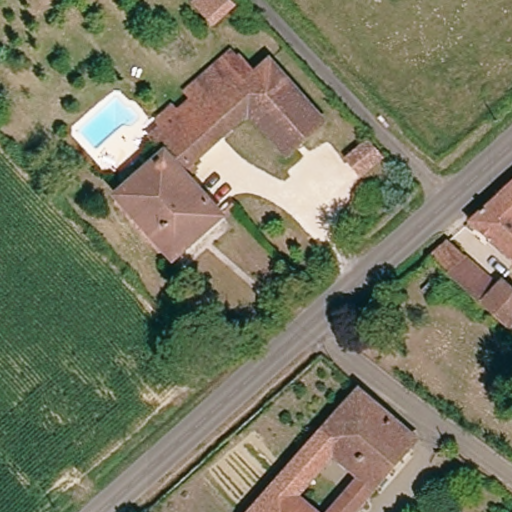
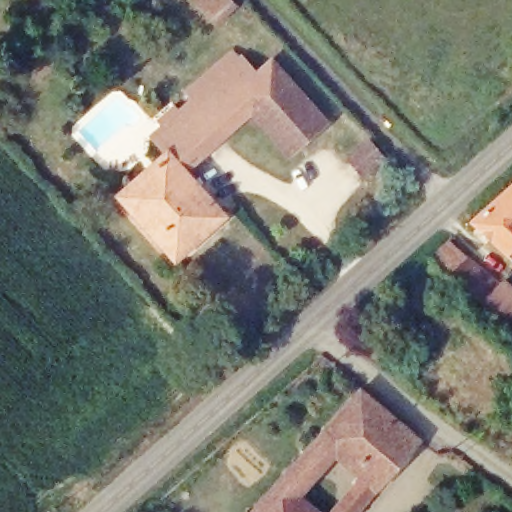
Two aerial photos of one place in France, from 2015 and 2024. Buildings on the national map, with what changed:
unchanged [(232,14),(210,35),(186,12),(199,0),(219,0),(232,14)]
unchanged [(330,120),(294,154),(252,112),(190,170),(228,211),(179,259),(120,197),(176,146),(158,126),(178,107),(183,112),(198,97),(194,92),(236,52),(242,59),(247,54),(262,72),(274,62),(330,120)]
unchanged [(357,187),(342,172),(361,154),(376,169),(357,187)]
unchanged [(512,183),(512,249),(475,215),(512,183)]
unchanged [(435,250),(454,233),(502,281),(508,276),(512,280),(512,321),(435,250)]
unchanged [(424,436),(359,512),(332,512),(365,473),(340,452),(306,492),(329,512),(257,512),(364,383),(424,436)]

